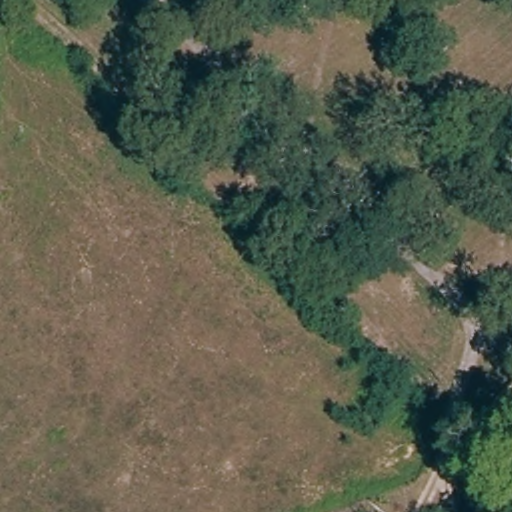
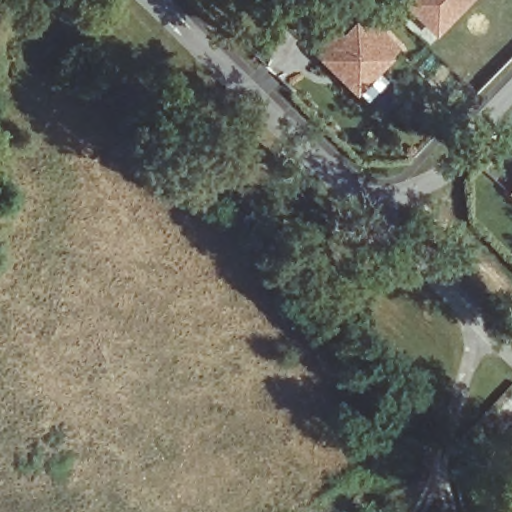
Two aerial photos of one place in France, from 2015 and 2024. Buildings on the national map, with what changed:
new [(400,1),(401,0),(472,0),(435,38),(400,1)]
new [(311,48),(333,25),(342,34),(368,11),(401,48),(355,96),(319,57),(311,48)]
new [(512,188),(512,197),(507,192),(512,188)]

